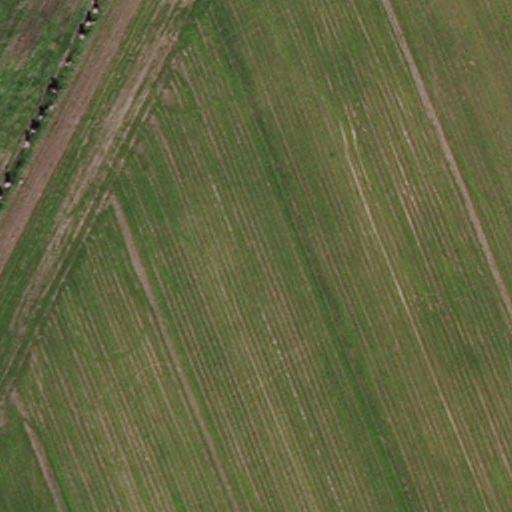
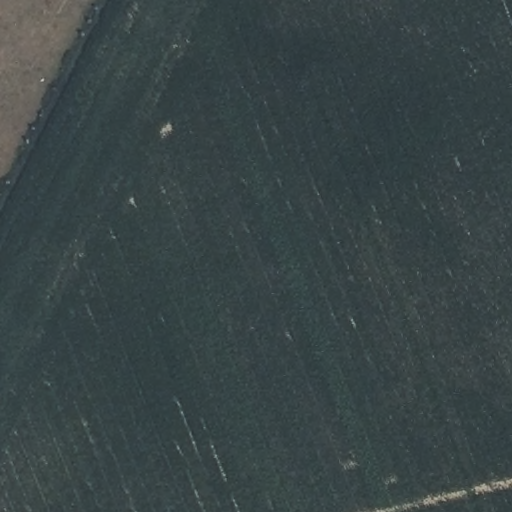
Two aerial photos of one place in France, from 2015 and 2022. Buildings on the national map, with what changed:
[]

